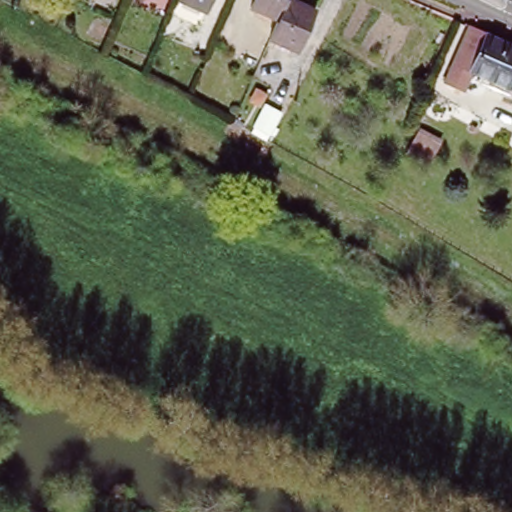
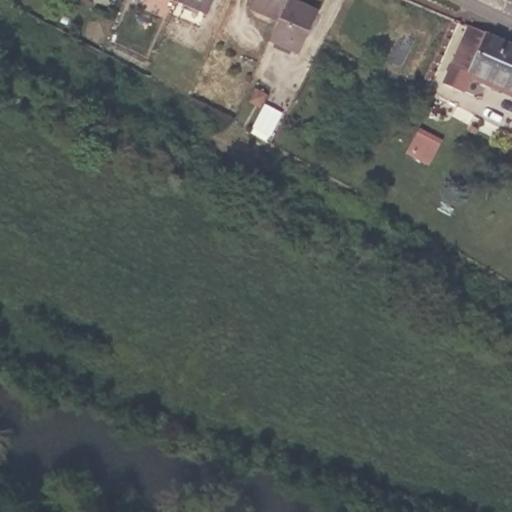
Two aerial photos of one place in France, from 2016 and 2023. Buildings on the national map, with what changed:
unchanged [(210,0),(207,9),(186,0),(210,0)]
unchanged [(249,9),(253,0),(283,0),(293,0),(295,1),(310,9),(308,15),(292,48),(266,36),(274,20),(249,9)]
unchanged [(447,75),(451,66),(469,27),(512,46),(512,94),(471,75),(467,84),(447,75)]

